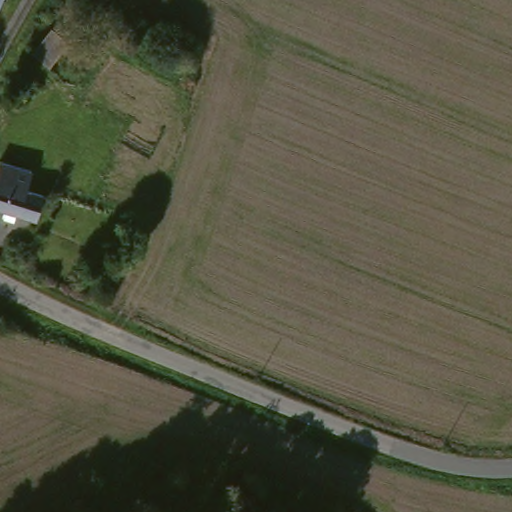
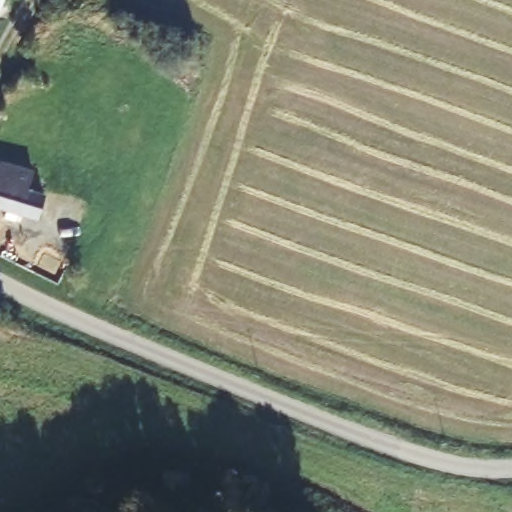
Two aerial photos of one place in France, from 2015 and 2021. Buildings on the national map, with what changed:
unchanged [(69,40),(47,65),(34,54),(55,30),(69,40)]
unchanged [(31,168),(24,191),(42,199),(34,224),(0,214),(0,168),(4,159),(31,168)]

